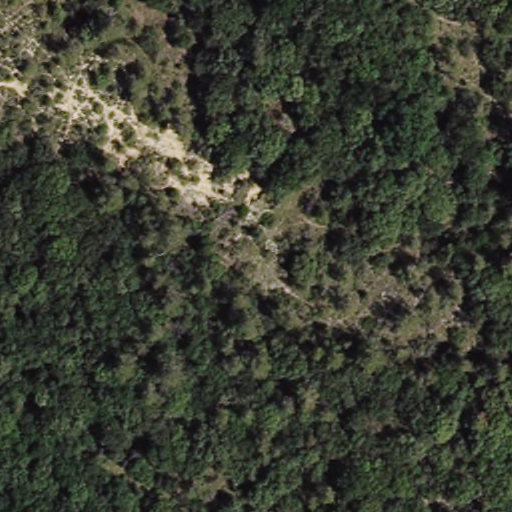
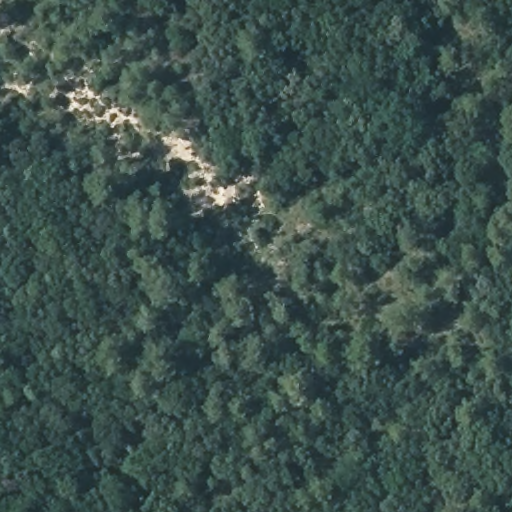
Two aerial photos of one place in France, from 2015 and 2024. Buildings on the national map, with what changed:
[]

